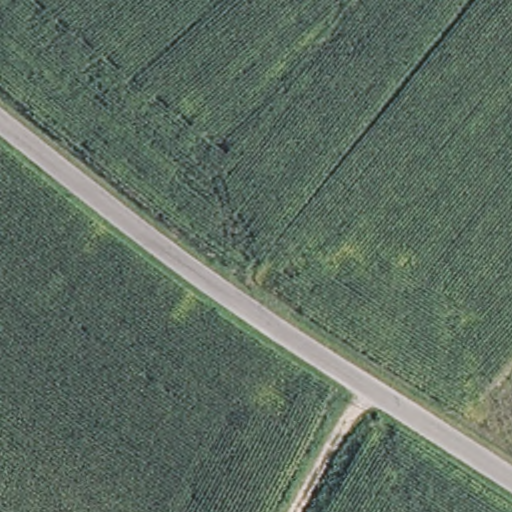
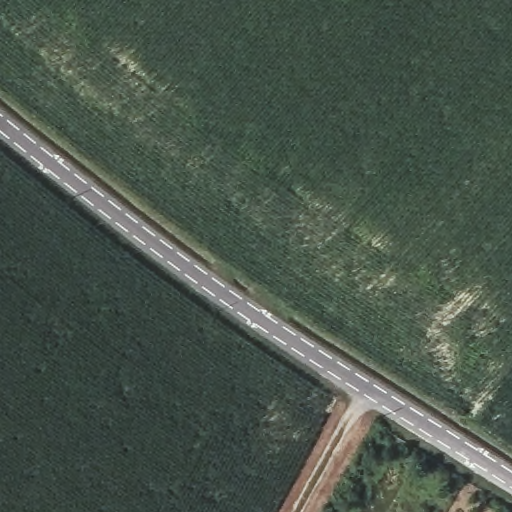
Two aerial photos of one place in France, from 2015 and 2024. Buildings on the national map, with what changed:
[]

